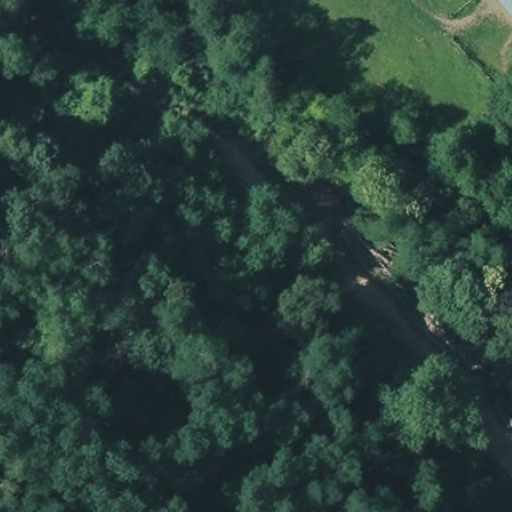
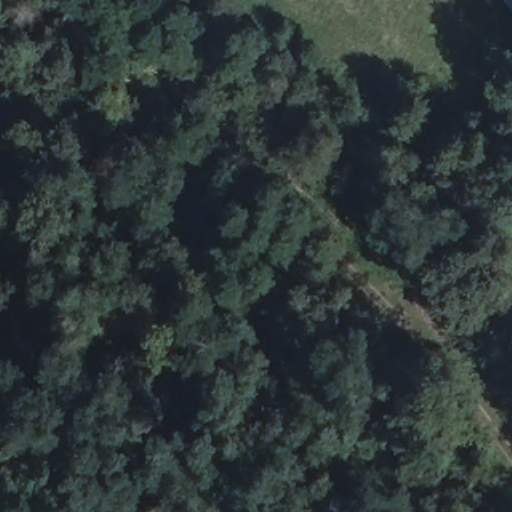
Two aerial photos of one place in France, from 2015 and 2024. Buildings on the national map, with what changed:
unchanged [(501,0),(512,0),(512,18),(501,0)]

